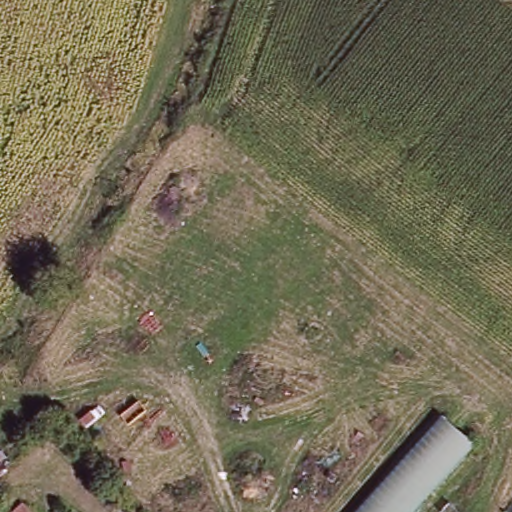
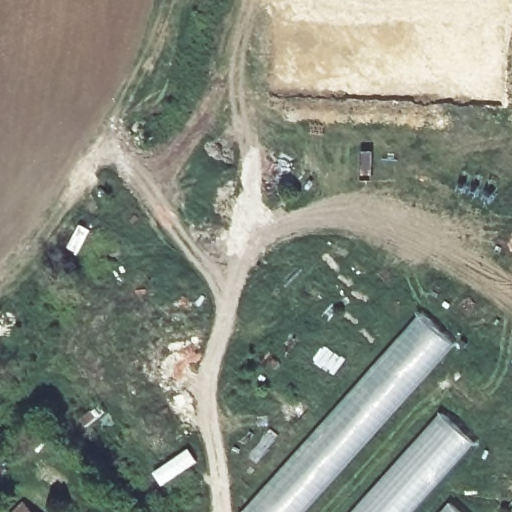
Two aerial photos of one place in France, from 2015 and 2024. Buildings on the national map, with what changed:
new [(303,512),(242,512),(421,317),(453,345),(303,512)]
unchanged [(477,442),(414,512),(355,512),(444,413),(477,442)]
unchanged [(30,512),(25,512),(28,509),(30,512)]
unchanged [(451,512),(448,512),(450,510),(451,512)]

